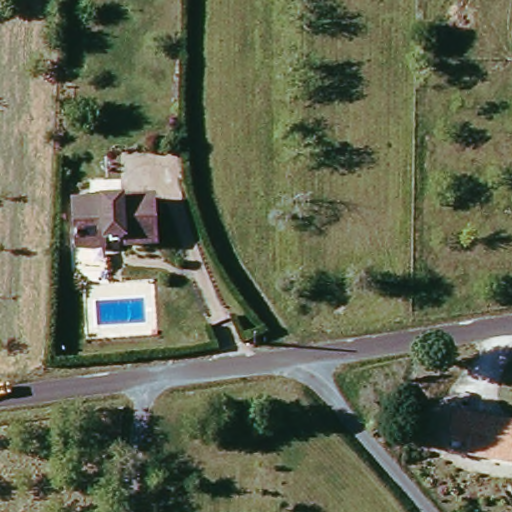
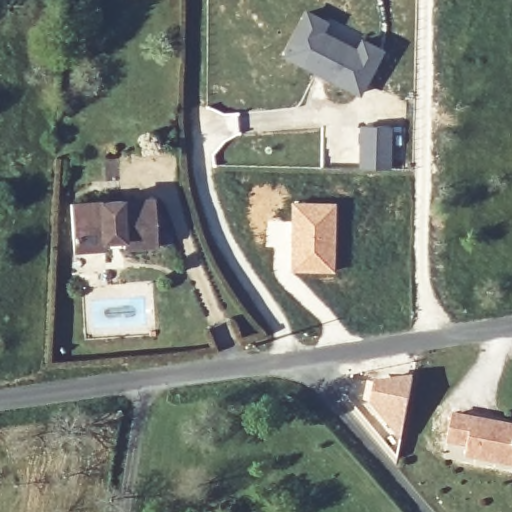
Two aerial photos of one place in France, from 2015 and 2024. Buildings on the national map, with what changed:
new [(304,8),(331,21),(326,30),(354,45),(360,34),(385,49),(361,97),(280,57),(304,8)]
new [(358,125),(393,126),(392,170),(358,170),(358,125)]
unchanged [(161,242),(133,246),(131,240),(111,242),(111,248),(81,252),(76,206),(156,196),(161,242)]
new [(291,200),(336,202),(335,273),(289,273),(291,200)]
new [(403,438),(372,404),(377,382),(413,377),(403,438)]
unchanged [(465,451),(467,440),(446,436),(451,410),(512,421),(512,460),(498,457),(465,451)]
demolished [(380,440),(372,427),(388,418),(396,431),(380,440)]

